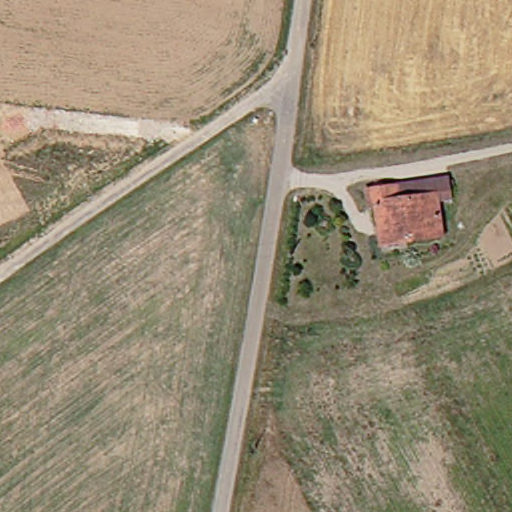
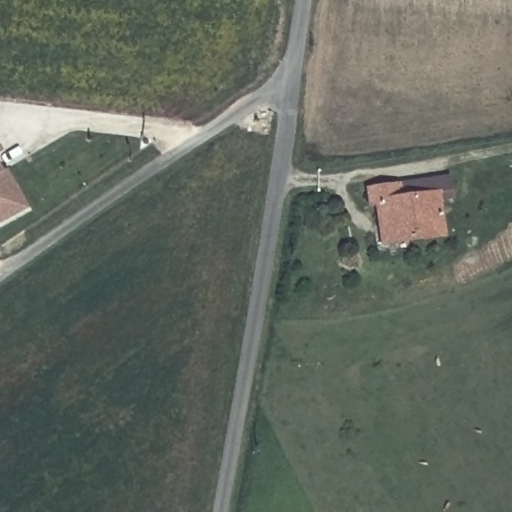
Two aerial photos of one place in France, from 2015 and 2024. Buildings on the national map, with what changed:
new [(0,172),(5,170),(25,209),(0,222),(0,172)]
unchanged [(458,179),(460,197),(457,197),(446,199),(451,242),(389,245),(384,210),(379,209),(379,189),(454,180),(458,179)]

